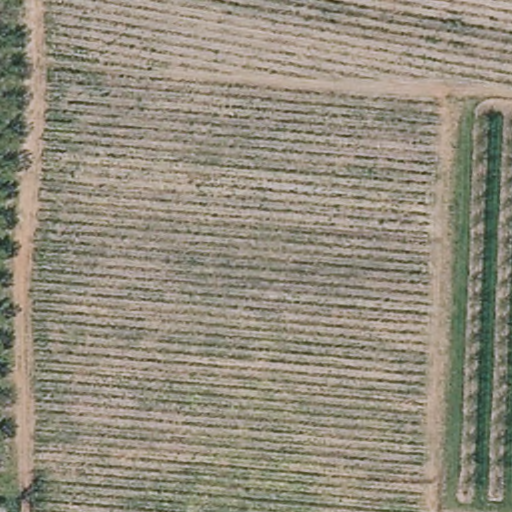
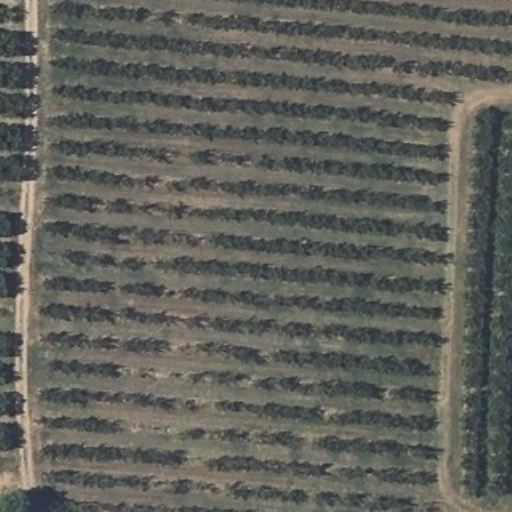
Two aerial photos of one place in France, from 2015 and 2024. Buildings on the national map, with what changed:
unchanged [(0,512),(0,505),(3,505),(3,512),(0,512)]

